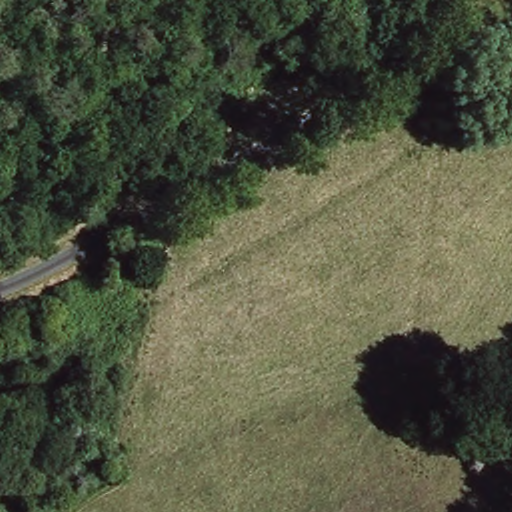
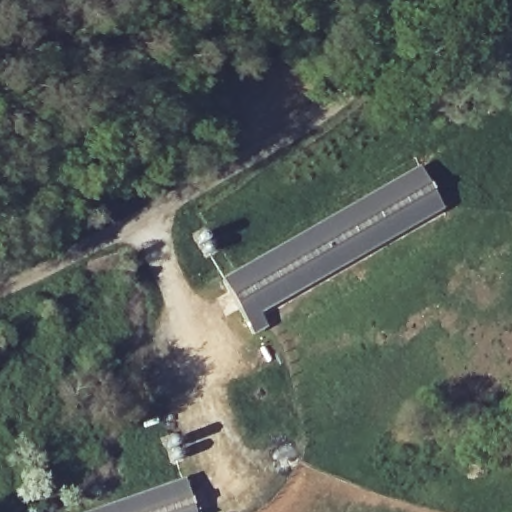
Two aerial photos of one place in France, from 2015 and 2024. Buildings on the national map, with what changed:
new [(442,208),(261,313),(268,326),(252,335),(220,279),(417,167),(442,208)]
unchanged [(483,469),(468,470),(467,457),(483,456),(483,469)]
new [(197,512),(86,512),(184,477),(197,512)]

